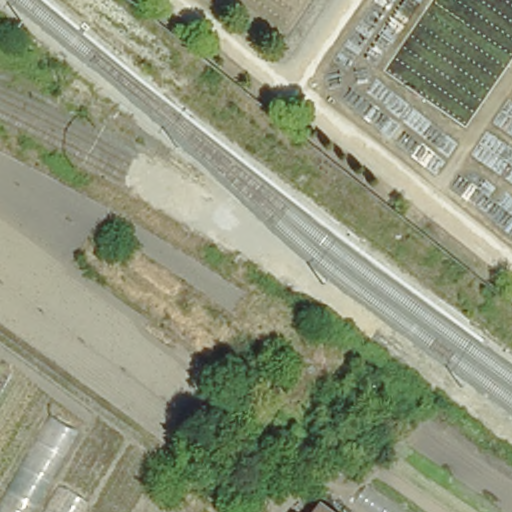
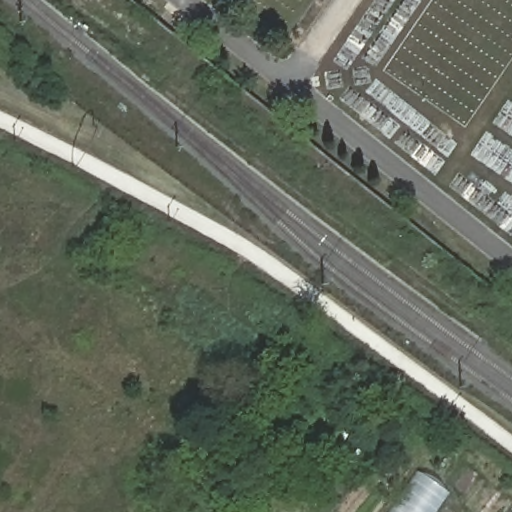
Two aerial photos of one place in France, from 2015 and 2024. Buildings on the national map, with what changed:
unchanged [(314,430),(326,413),(355,433),(341,450),(317,433),(289,479),(255,459),(283,412),(314,430)]
demolished [(78,431),(30,512),(0,512),(0,497),(50,414),(78,431)]
unchanged [(245,461),(267,472),(260,486),(238,474),(245,461)]
new [(448,494),(436,512),(390,512),(417,472),(448,494)]
demolished [(92,498),(84,512),(40,512),(56,483),(92,498)]
demolished [(327,512),(314,512),(319,505),(327,512)]

